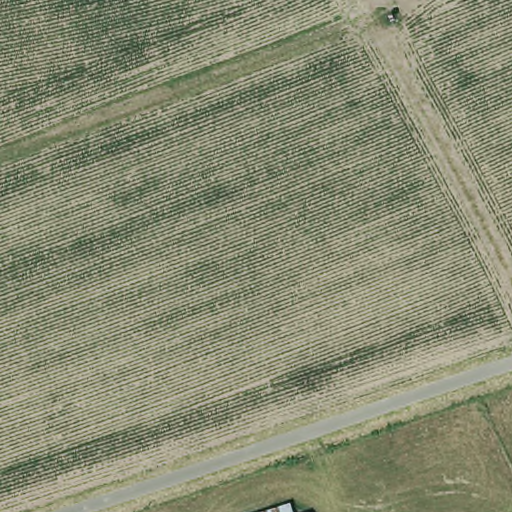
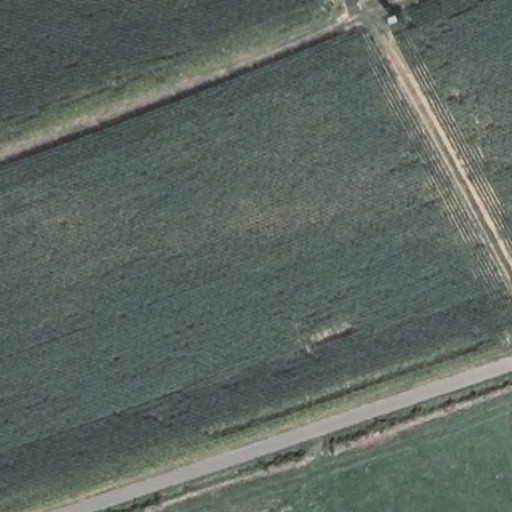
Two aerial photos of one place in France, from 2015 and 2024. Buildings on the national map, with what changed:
unchanged [(302,512),(262,512),(296,500),(302,512)]

